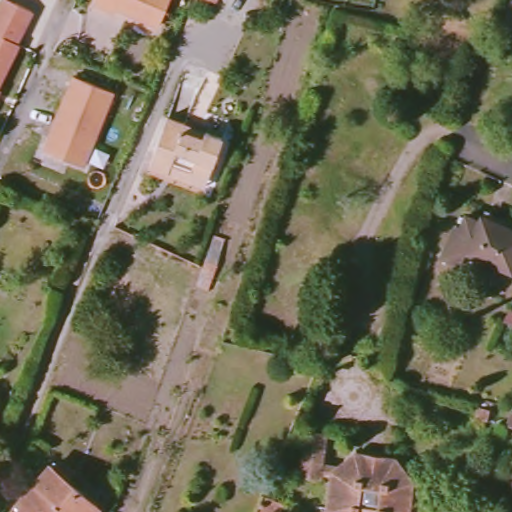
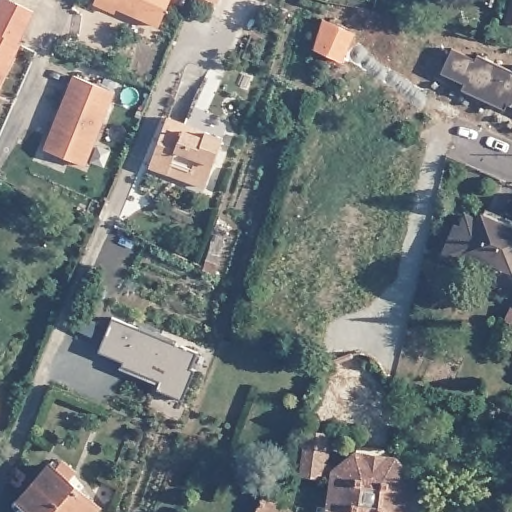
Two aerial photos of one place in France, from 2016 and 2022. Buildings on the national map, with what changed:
unchanged [(115,10),(112,16),(97,10),(101,0),(172,0),(161,29),(115,10)]
new [(512,0),(512,23),(506,22),(512,0)]
unchanged [(31,18),(21,37),(25,40),(0,86),(0,14),(5,5),(31,18)]
new [(353,33),(340,62),(313,49),(325,21),(353,33)]
new [(463,84),(440,74),(452,49),(469,57),(463,84)]
new [(475,60),(477,55),(512,71),(512,106),(507,104),(504,110),(462,90),(469,57),(475,60)]
unchanged [(118,99),(84,171),(46,152),(80,80),(118,99)]
unchanged [(166,174),(150,169),(165,117),(184,123),(183,130),(202,136),(204,131),(221,136),(209,176),(206,186),(166,174)]
unchanged [(510,272),(471,255),(465,268),(445,259),(457,231),(462,234),(467,222),(481,228),(485,221),(512,232),(512,267),(510,272)]
new [(114,317),(209,357),(202,372),(193,369),(184,400),(157,389),(161,381),(122,366),(125,362),(99,352),(114,317)]
unchanged [(322,477),(311,476),(306,475),(312,430),(329,432),(327,440),(322,477)]
unchanged [(327,507),(333,467),(361,450),(396,455),(416,480),(411,512),(331,512),(327,507)]
unchanged [(20,495),(54,461),(97,502),(88,512),(38,512),(20,495)]

